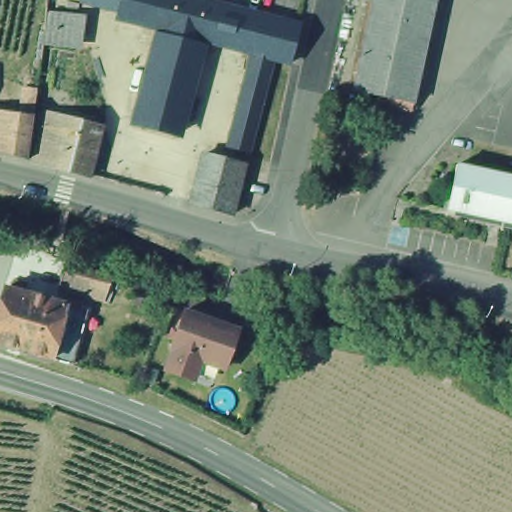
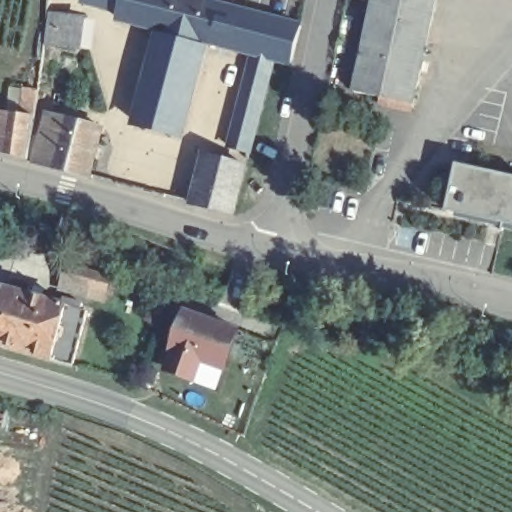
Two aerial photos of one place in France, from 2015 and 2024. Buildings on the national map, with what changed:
unchanged [(266,59),(246,54),(191,40),(160,32),(114,20),(117,4),(103,0),(193,0),(259,17),(288,25),(285,46),(281,62),(266,59)]
unchanged [(411,83),(405,110),(344,96),(352,57),(353,52),(362,7),(342,2),(342,0),(428,0),(412,77),(411,83)]
unchanged [(76,19),(72,52),(39,50),(35,49),(39,15),(44,16),(76,19)]
unchanged [(191,40),(189,50),(193,52),(172,133),(129,122),(152,40),(157,41),(160,32),(191,40)]
unchanged [(242,149),(222,143),(246,54),(266,59),(242,149)]
unchanged [(24,92),(37,95),(34,121),(27,165),(0,157),(0,116),(21,119),(24,92)]
unchanged [(32,166),(46,117),(61,122),(102,132),(88,181),(46,170),(32,166)]
unchanged [(189,207),(202,157),(244,169),(230,218),(189,207)]
unchanged [(134,186),(138,169),(161,175),(156,192),(134,186)]
unchanged [(442,214),(453,170),(512,183),(512,229),(442,214)]
unchanged [(87,296),(61,288),(66,273),(92,282),(87,296)]
unchanged [(0,346),(0,290),(7,291),(13,293),(17,282),(27,286),(25,296),(67,308),(84,313),(71,366),(52,361),(0,346)]
unchanged [(231,326),(216,363),(199,357),(195,372),(166,362),(171,348),(167,347),(182,308),(231,326)]

